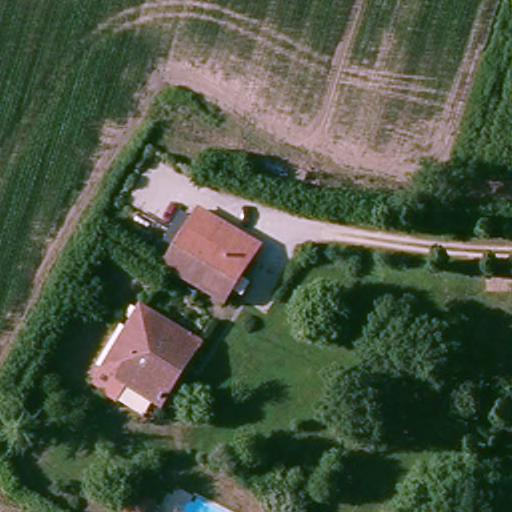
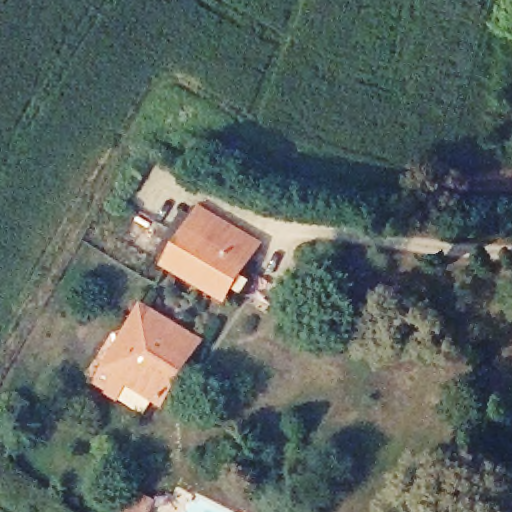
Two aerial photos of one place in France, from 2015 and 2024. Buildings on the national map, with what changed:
unchanged [(258,240),(221,300),(162,264),(199,205),(258,240)]
unchanged [(165,397),(162,402),(161,402),(101,366),(140,302),(201,340),(165,397)]
unchanged [(139,492),(155,501),(150,512),(129,512),(139,492)]

